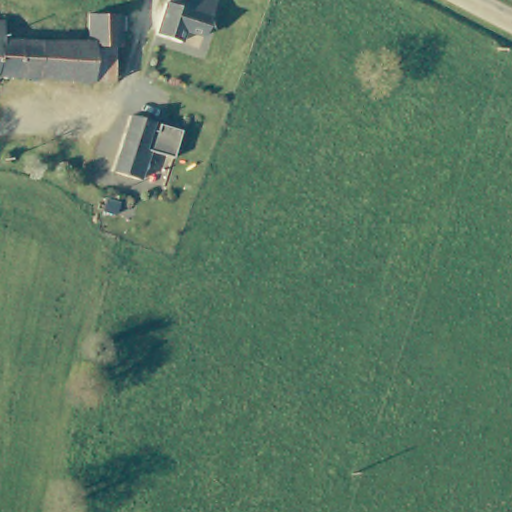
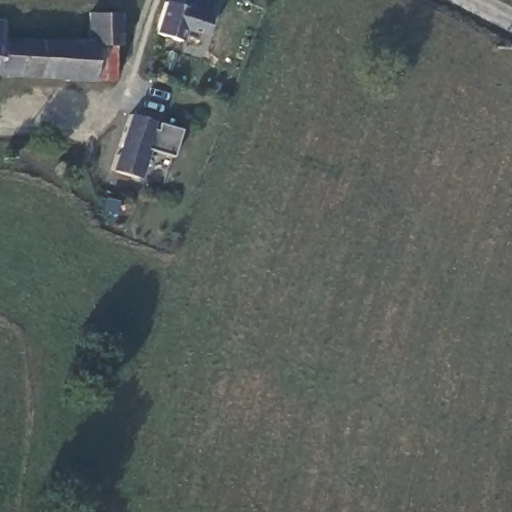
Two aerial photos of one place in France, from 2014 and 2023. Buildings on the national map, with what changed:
unchanged [(181,41),(157,31),(166,4),(167,2),(167,0),(215,0),(210,17),(204,37),(187,31),(181,41)]
unchanged [(39,80),(40,45),(90,47),(91,17),(121,19),(119,49),(115,49),(112,84),(89,82),(39,80)]
unchanged [(3,25),(4,42),(0,42),(0,24),(3,25)]
unchanged [(39,80),(0,78),(0,42),(4,42),(40,45),(39,80)]
unchanged [(152,130),(157,132),(160,125),(180,131),(172,158),(152,152),(141,180),(111,169),(130,115),(155,123),(152,130)]

